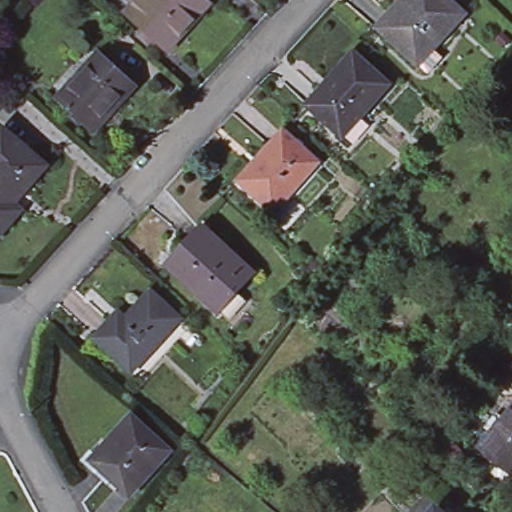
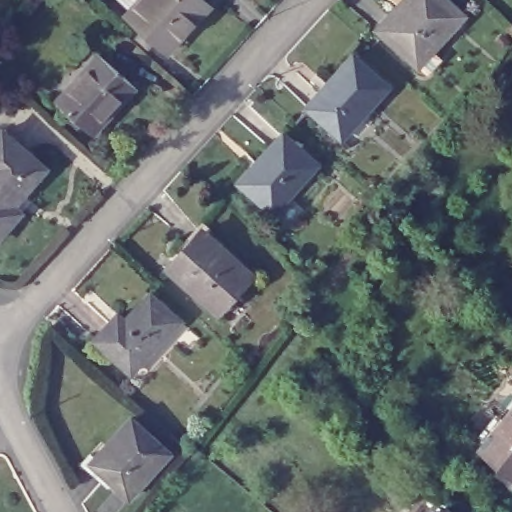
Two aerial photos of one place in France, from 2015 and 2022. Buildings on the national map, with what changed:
unchanged [(130,8),(121,0),(137,0),(130,8)]
unchanged [(136,37),(141,30),(124,14),(130,8),(137,0),(203,0),(208,5),(166,51),(153,40),(146,47),(136,37)]
unchanged [(371,28),(396,0),(441,0),(457,15),(425,49),(434,58),(421,73),(411,64),(371,28)]
unchanged [(97,52),(135,85),(92,132),(54,99),(97,52)]
unchanged [(357,53),(393,85),(345,137),(309,105),(357,53)]
unchanged [(286,130),(321,162),(266,221),(231,189),(286,130)]
unchanged [(15,207),(23,214),(0,239),(0,139),(6,132),(48,170),(15,207)]
unchanged [(205,226),(256,271),(221,310),(171,265),(205,226)]
unchanged [(116,320),(124,327),(149,300),(178,326),(131,380),(93,347),(116,320)]
unchanged [(511,370),(512,369),(512,372),(511,370)]
unchanged [(479,452),(512,412),(512,480),(498,468),(479,452)]
unchanged [(130,420),(169,454),(129,500),(90,466),(130,420)]
unchanged [(438,512),(431,512),(434,508),(438,512)]

